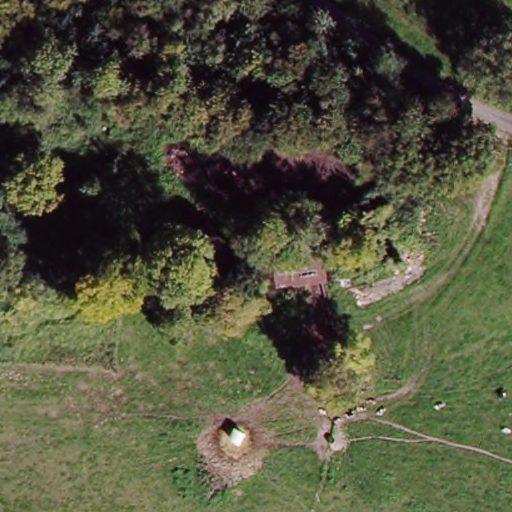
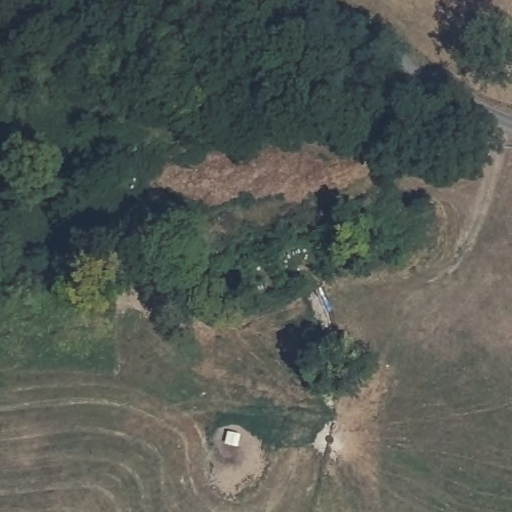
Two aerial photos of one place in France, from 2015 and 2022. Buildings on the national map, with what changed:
unchanged [(323,289),(254,293),(250,247),(317,240),(323,289)]

